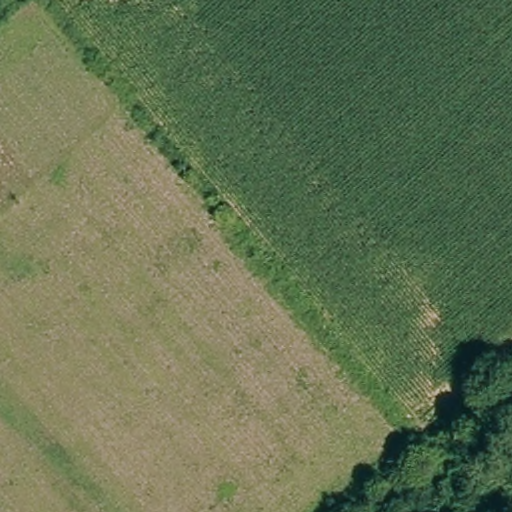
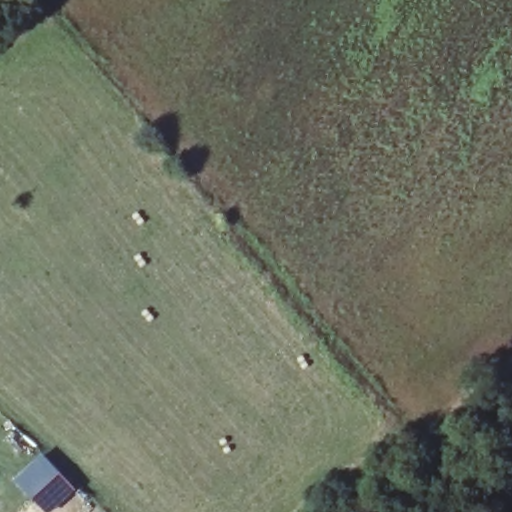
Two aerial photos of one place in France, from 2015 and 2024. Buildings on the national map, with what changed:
new [(77,489),(52,512),(46,512),(15,480),(43,452),(77,489)]

